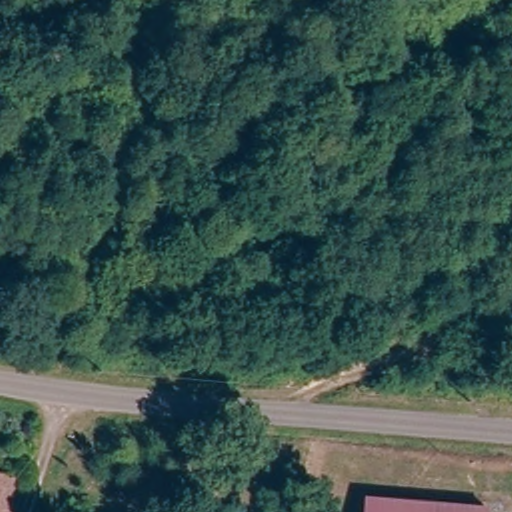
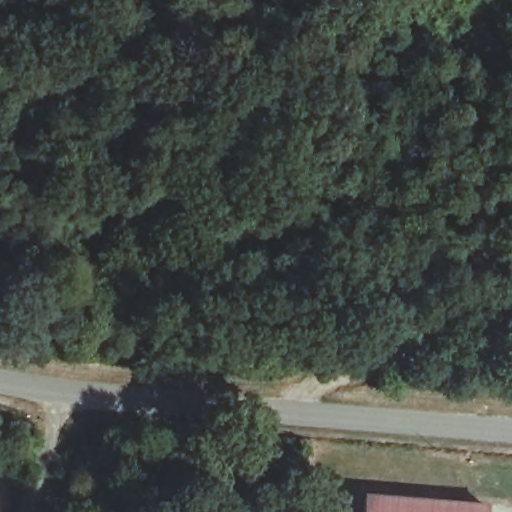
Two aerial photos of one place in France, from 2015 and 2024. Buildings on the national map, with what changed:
unchanged [(15,512),(0,512),(0,474),(25,482),(15,512)]
unchanged [(366,512),(368,494),(484,505),(484,512),(366,512)]

